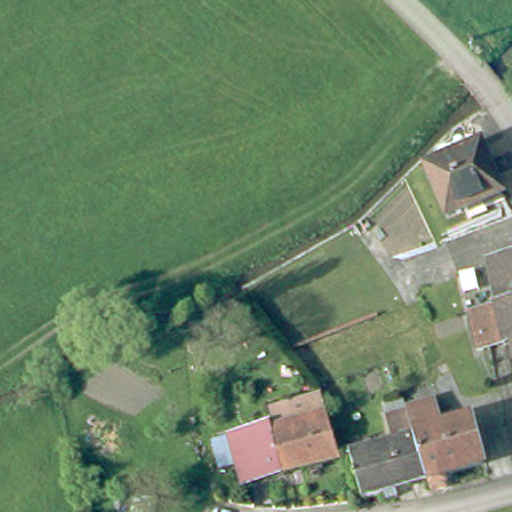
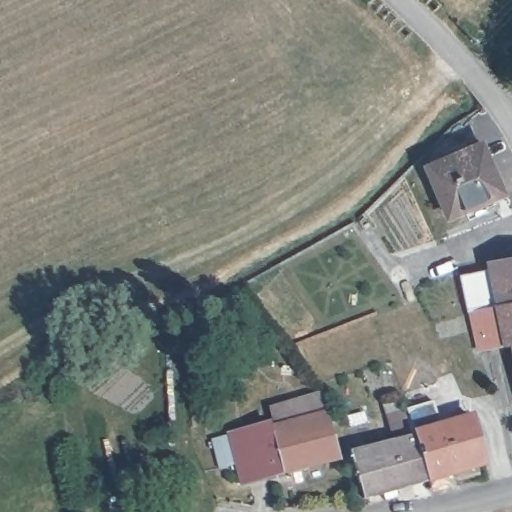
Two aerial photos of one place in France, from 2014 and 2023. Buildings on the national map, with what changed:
unchanged [(505,189),(450,213),(430,165),(484,142),(505,189)]
unchanged [(469,272),(503,265),(502,260),(512,257),(512,300),(482,306),(475,307),(469,272)]
unchanged [(490,346),(482,306),(512,300),(512,341),(490,346)]
unchanged [(479,412),(493,455),(454,467),(457,475),(440,480),(438,472),(416,402),(440,392),(450,420),(479,412)]
unchanged [(342,462),(247,487),(229,440),(274,428),(268,413),(318,400),(325,417),(342,461),(342,462)]
unchanged [(397,491),(395,486),(375,492),(359,450),(400,436),(390,410),(416,402),(438,472),(408,482),(411,490),(399,493),(397,491)]

